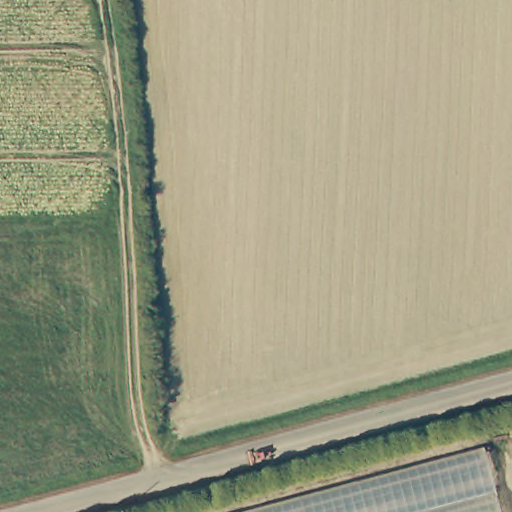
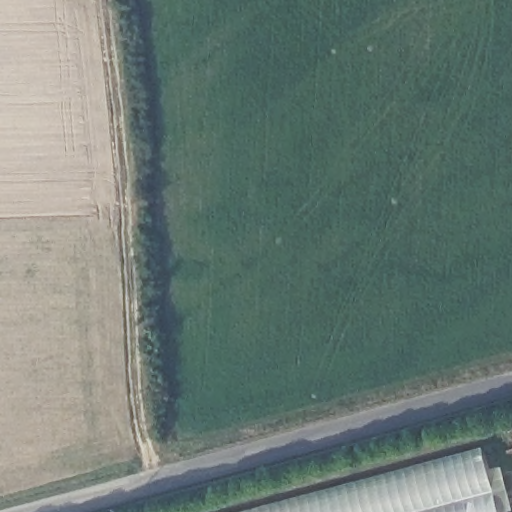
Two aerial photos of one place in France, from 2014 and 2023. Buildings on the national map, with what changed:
unchanged [(480,445),(497,512),(231,512),(480,445)]

